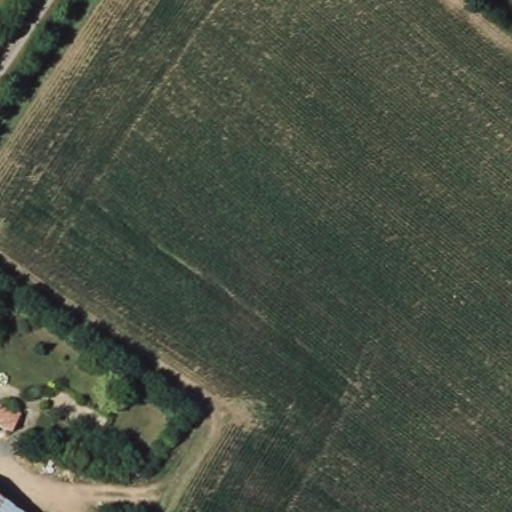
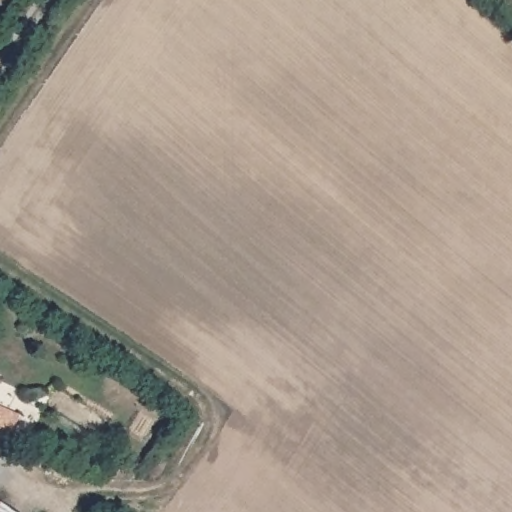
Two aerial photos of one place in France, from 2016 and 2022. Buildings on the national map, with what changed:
unchanged [(7,431),(0,428),(0,397),(17,405),(7,431)]
unchanged [(0,497),(21,512),(0,512),(0,497)]

